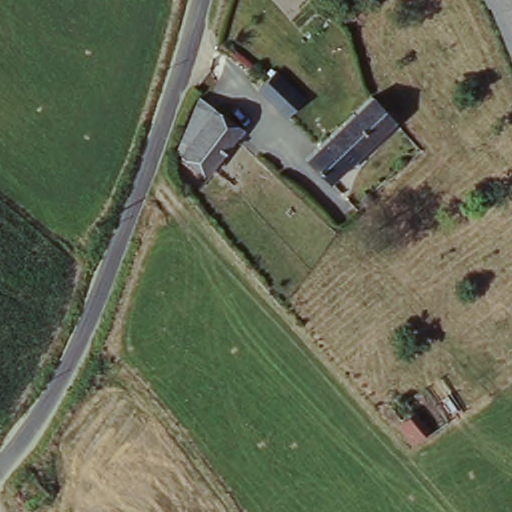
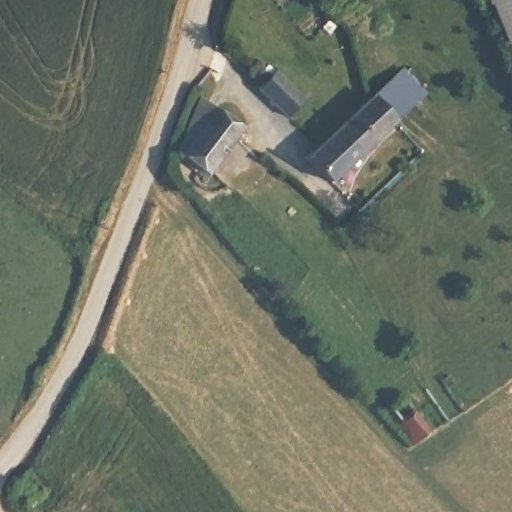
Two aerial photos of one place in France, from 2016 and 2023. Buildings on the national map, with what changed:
unchanged [(485,0),(501,0),(487,5),(485,0)]
unchanged [(501,0),(512,0),(512,62),(487,5),(501,0)]
new [(366,98),(401,68),(424,96),(391,124),(366,98)]
unchanged [(277,73),(306,100),(287,119),(259,89),(277,73)]
unchanged [(327,182),(302,155),(366,98),(391,124),(327,182)]
unchanged [(206,100),(247,129),(214,174),(183,151),(206,100)]
unchanged [(404,395),(431,430),(417,440),(391,406),(404,395)]

